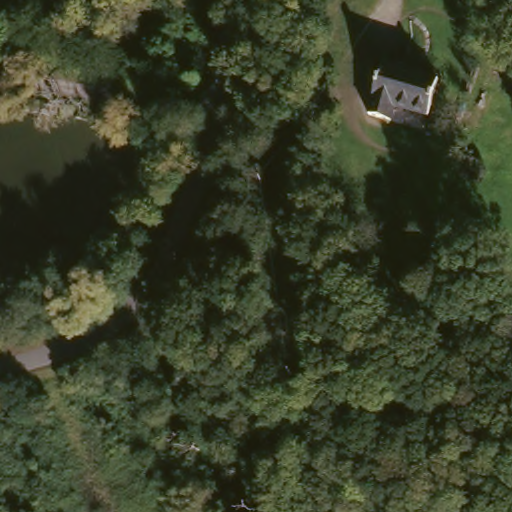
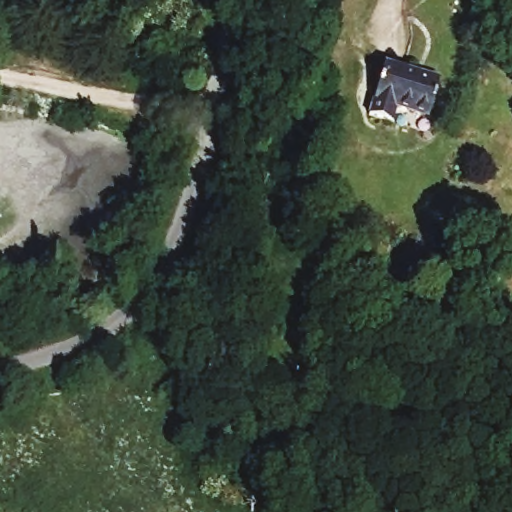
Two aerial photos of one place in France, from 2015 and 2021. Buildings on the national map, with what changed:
unchanged [(380,64),(433,78),(423,114),(392,106),(388,122),(365,116),(380,64)]

